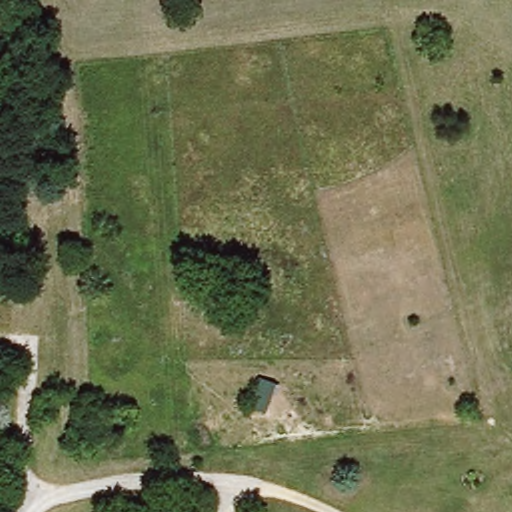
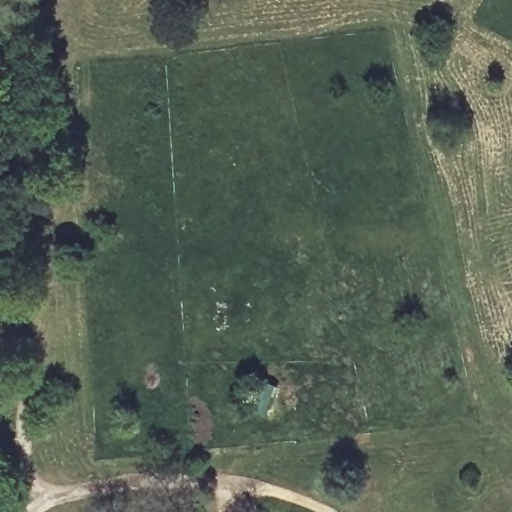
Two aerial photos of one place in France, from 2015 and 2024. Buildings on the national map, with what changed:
unchanged [(267,375),(290,386),(276,416),(253,405),(267,375)]

